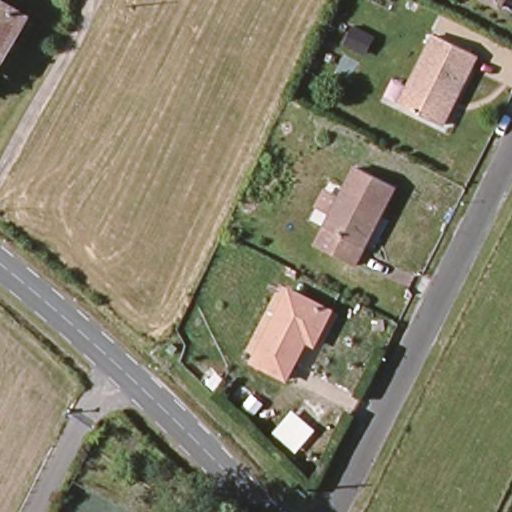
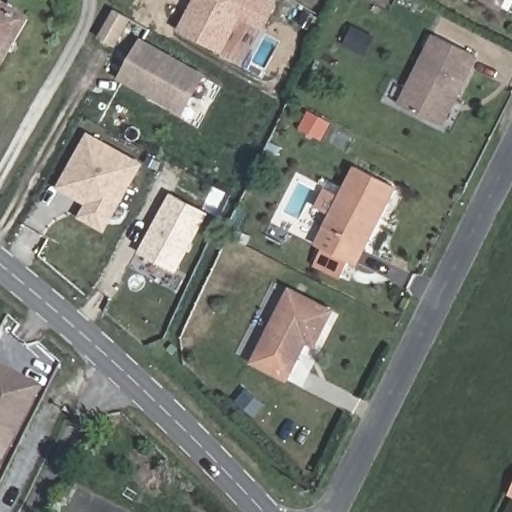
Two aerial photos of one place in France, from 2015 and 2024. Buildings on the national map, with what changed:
unchanged [(5,0),(34,17),(2,75),(0,73),(0,0),(5,0)]
new [(264,27),(240,15),(222,51),(182,30),(197,0),(263,0),(275,6),(264,27)]
unchanged [(488,0),(500,0),(497,6),(488,0)]
new [(114,9),(130,17),(115,44),(100,35),(114,9)]
unchanged [(433,122),(401,106),(436,35),(476,54),(454,99),(441,126),(433,122)]
new [(141,38),(207,75),(184,117),(118,80),(141,38)]
unchanged [(0,78),(0,73),(2,75),(0,78)]
new [(56,189),(92,134),(145,164),(105,234),(77,218),(85,205),(56,189)]
unchanged [(395,190),(354,267),(320,248),(360,172),(395,190)]
new [(171,194),(209,214),(177,272),(139,252),(171,194)]
unchanged [(332,310),(312,345),(306,340),(283,377),(251,358),(291,287),(332,310)]
new [(0,459),(0,364),(44,387),(5,462),(0,459)]

